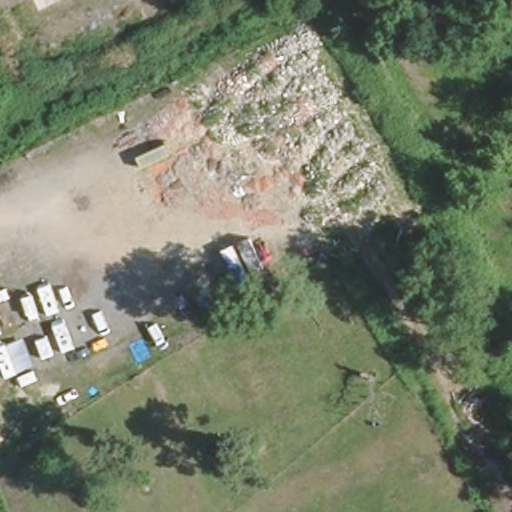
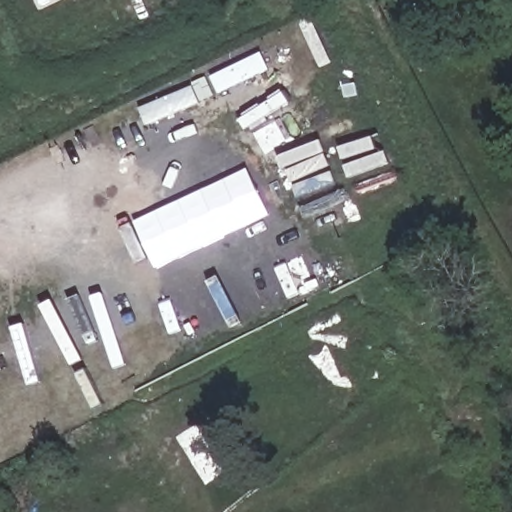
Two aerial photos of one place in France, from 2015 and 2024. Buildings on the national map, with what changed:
new [(148,126),(140,109),(262,54),(269,71),(148,126)]
new [(269,215),(157,269),(135,222),(247,168),(269,215)]

